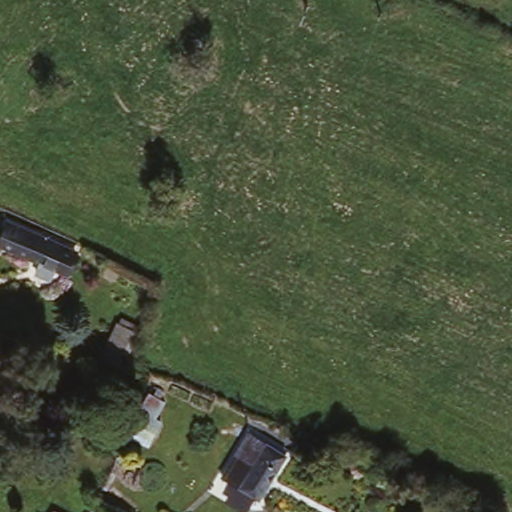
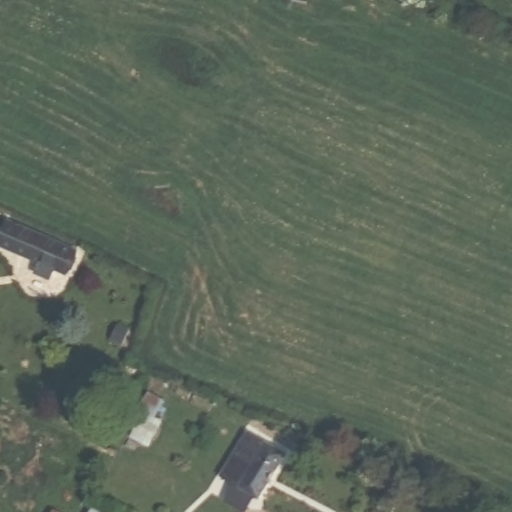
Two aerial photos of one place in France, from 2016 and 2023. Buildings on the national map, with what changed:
unchanged [(76,245),(65,268),(55,264),(51,274),(37,268),(41,258),(0,240),(0,238),(9,217),(76,245)]
unchanged [(139,328),(127,353),(124,351),(117,363),(104,356),(122,320),(139,328)]
unchanged [(218,471),(245,428),(281,450),(254,493),(218,471)]
unchanged [(66,512),(52,512),(55,506),(66,512)]

